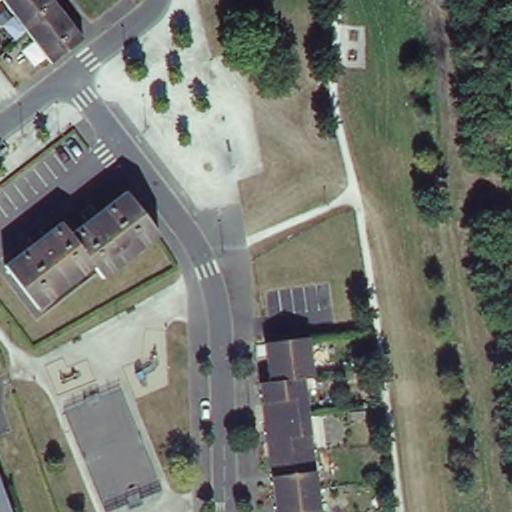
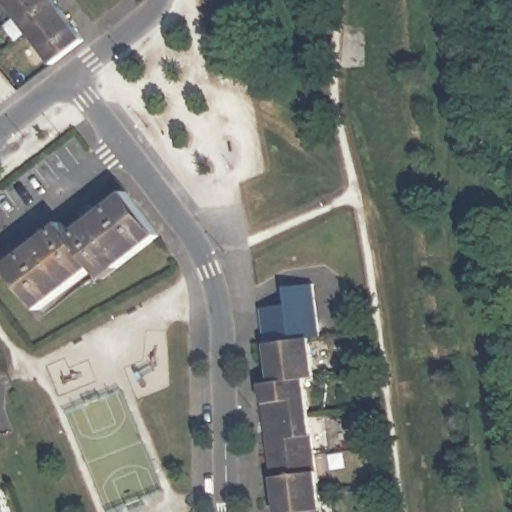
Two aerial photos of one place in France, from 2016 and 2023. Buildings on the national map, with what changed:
unchanged [(9,9),(2,0),(21,0),(9,9)]
unchanged [(9,9),(21,0),(54,0),(64,12),(30,37),(9,9)]
unchanged [(30,37),(64,12),(84,39),(51,64),(30,37)]
unchanged [(94,267),(38,309),(4,264),(61,222),(69,232),(125,190),(160,236),(103,278),(99,272),(94,267)]
new [(258,307),(282,304),(280,288),(313,284),(321,337),(309,338),(263,344),(258,307)]
unchanged [(303,383),(320,512),(275,512),(259,388),(269,388),(263,344),(309,338),(315,381),(303,383)]
unchanged [(0,512),(0,482),(13,512),(0,512)]

